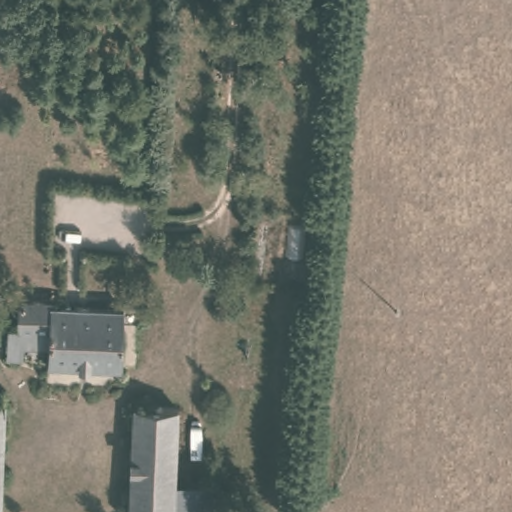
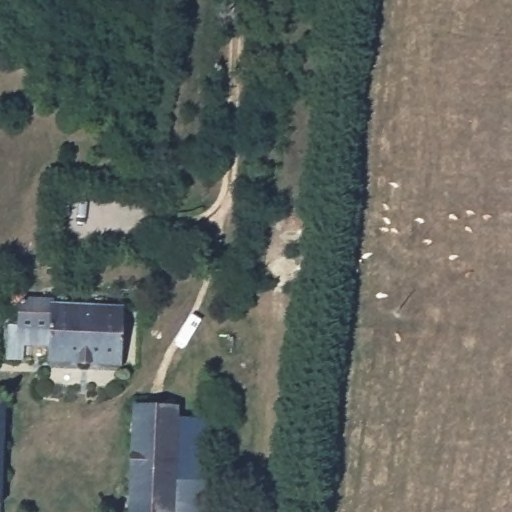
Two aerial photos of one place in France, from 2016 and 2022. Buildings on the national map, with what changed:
unchanged [(54,363),(53,344),(13,342),(13,327),(22,327),(23,308),(11,298),(19,289),(32,297),(54,298),(54,304),(125,306),(124,364),(54,363)]
unchanged [(8,296),(7,314),(0,314),(0,296),(8,296)]
unchanged [(8,394),(5,504),(0,504),(0,394),(8,394)]
unchanged [(179,512),(136,512),(139,406),(181,407),(179,470),(179,512)]
unchanged [(208,471),(208,512),(179,512),(179,470),(208,471)]

